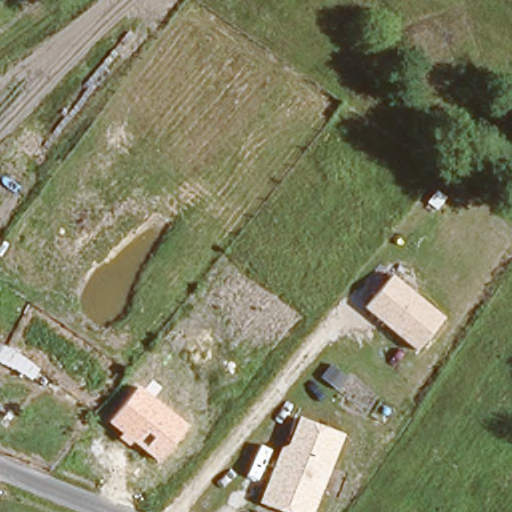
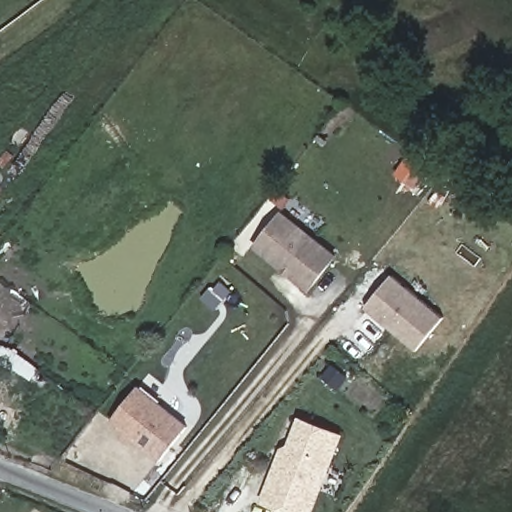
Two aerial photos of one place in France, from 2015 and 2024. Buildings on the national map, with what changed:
new [(282,211),(339,255),(310,292),(253,248),(282,211)]
unchanged [(418,351),(366,308),(395,275),(446,318),(418,351)]
unchanged [(2,346),(21,358),(17,367),(0,359),(0,350),(2,346)]
unchanged [(159,461),(109,423),(137,386),(189,425),(159,461)]
unchanged [(314,512),(286,512),(259,502),(281,449),(289,445),(299,415),(345,433),(314,512)]

